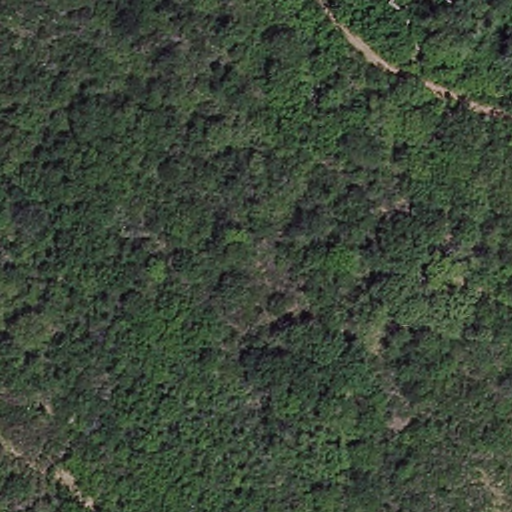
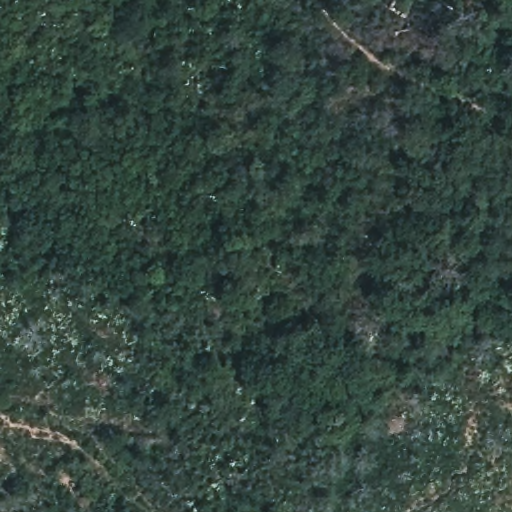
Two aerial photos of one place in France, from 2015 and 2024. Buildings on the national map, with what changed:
unchanged [(79,505),(75,495),(85,490),(89,501),(79,505)]

